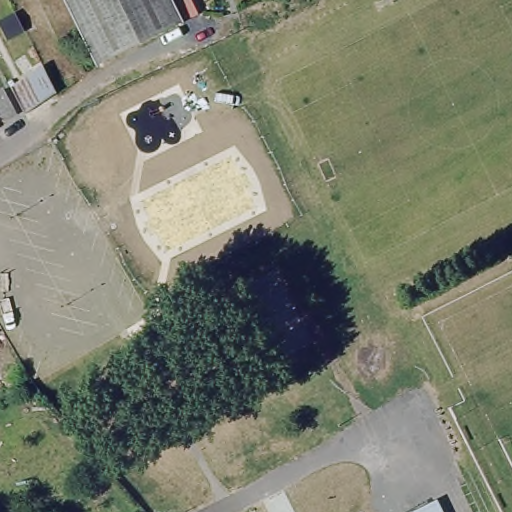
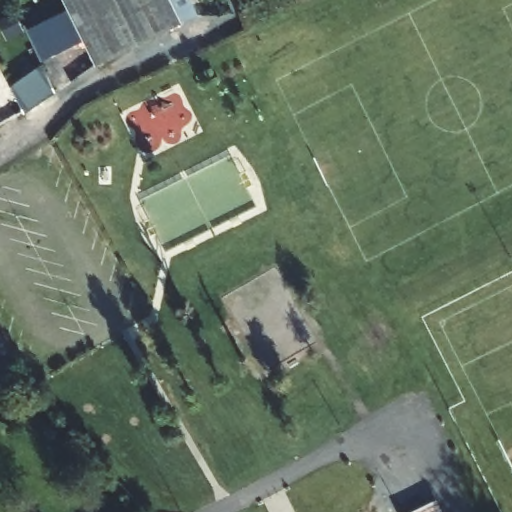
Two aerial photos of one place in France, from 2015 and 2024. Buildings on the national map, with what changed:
unchanged [(182,22),(179,23),(95,66),(63,0),(189,0),(196,14),(182,22)]
new [(84,41),(42,62),(26,31),(68,10),(84,41)]
unchanged [(55,92),(56,92),(23,109),(15,92),(10,82),(43,66),(55,92)]
unchanged [(437,499),(444,512),(411,512),(437,499)]

